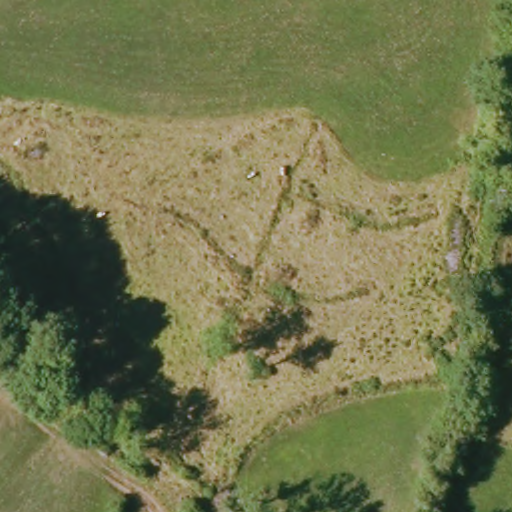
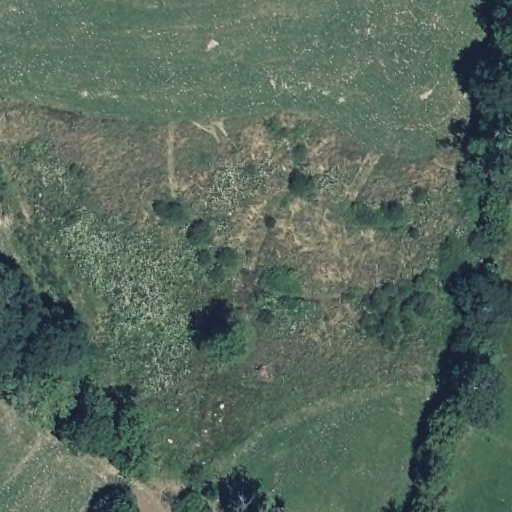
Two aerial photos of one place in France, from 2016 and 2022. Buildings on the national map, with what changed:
[]

